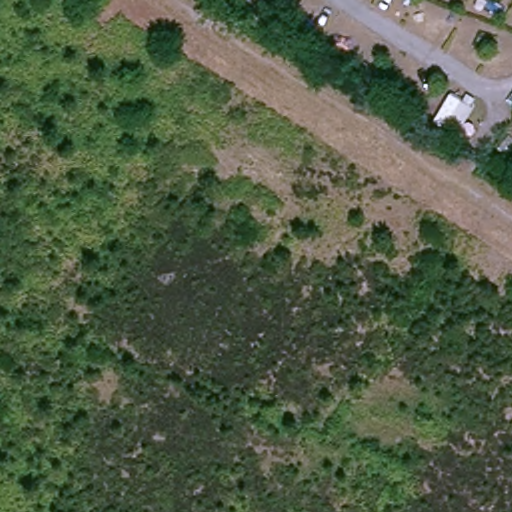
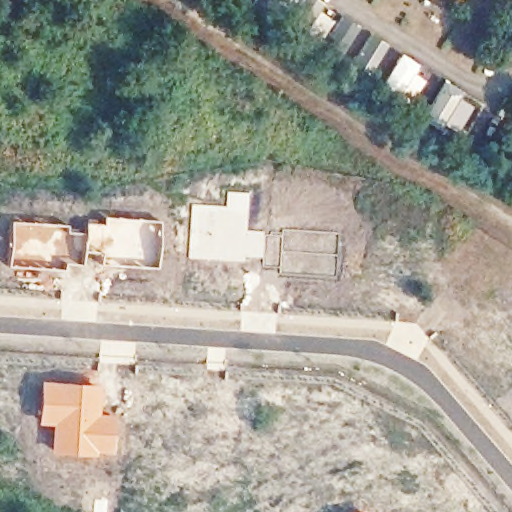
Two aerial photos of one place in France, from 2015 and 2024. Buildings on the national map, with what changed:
new [(225,206),(226,190),(250,191),(247,229),(264,230),(265,234),(280,235),(281,228),(340,232),(335,279),(277,274),(278,268),(263,267),(263,257),(245,256),(245,262),(187,258),(191,204),(225,206)]
new [(65,224),(65,231),(83,232),(84,222),(102,223),(102,216),(159,220),(156,267),(99,263),(99,251),(81,250),(80,263),(63,262),(62,270),(6,266),(9,220),(65,224)]
new [(99,384),(97,413),(112,415),(110,452),(95,451),(95,455),(49,452),(50,425),(36,424),(39,380),(99,384)]
new [(362,507),(365,512),(353,512),(362,507)]

